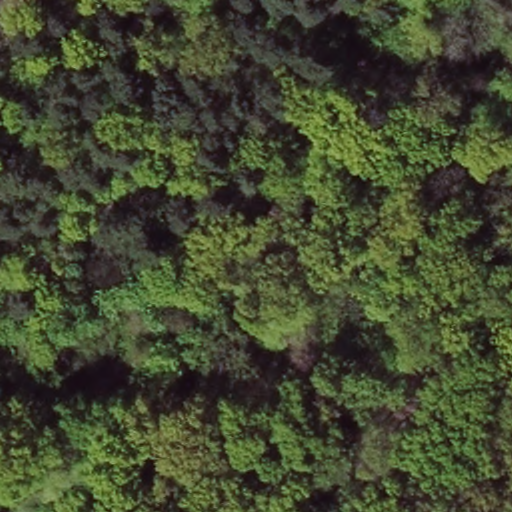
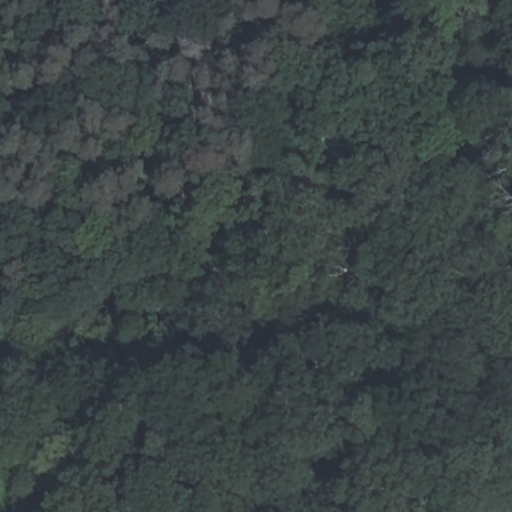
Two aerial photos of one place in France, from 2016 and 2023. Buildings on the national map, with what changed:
[]

